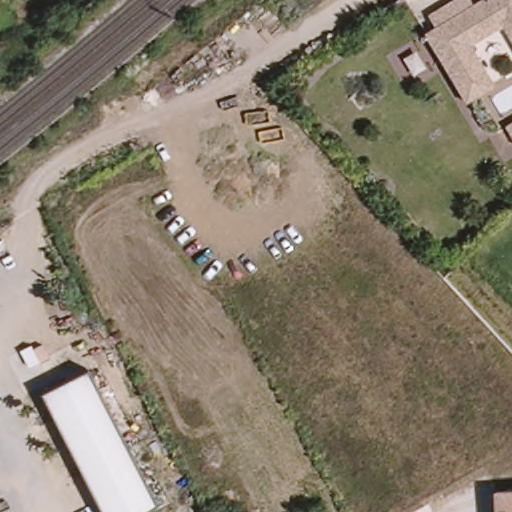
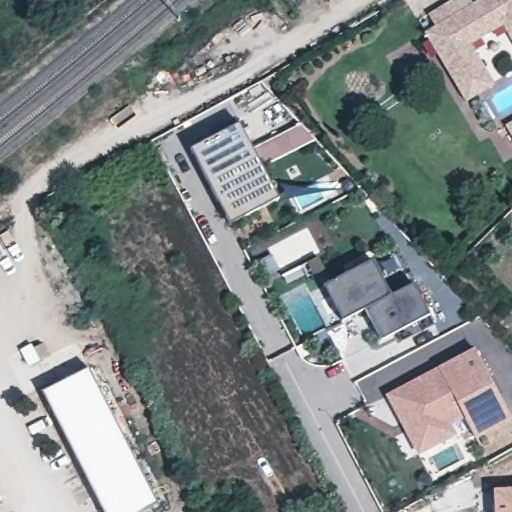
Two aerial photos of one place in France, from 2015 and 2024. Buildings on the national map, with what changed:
unchanged [(478,43),(502,83),(473,100),(432,31),(443,25),(435,13),(452,3),(459,15),(484,0),(512,0),(512,27),(510,23),(478,43)]
unchanged [(511,123),(512,122),(512,124),(511,123)]
new [(279,197),(230,224),(189,150),(240,123),(279,197)]
new [(390,296),(414,282),(431,315),(379,341),(364,309),(342,319),(325,285),(374,261),(390,296)]
new [(476,439),(463,414),(449,422),(458,435),(418,454),(386,394),(475,349),(512,416),(512,421),(476,439)]
unchanged [(89,371),(157,503),(137,512),(104,512),(41,394),(89,371)]
unchanged [(512,489),(512,512),(492,512),(491,490),(512,489)]

